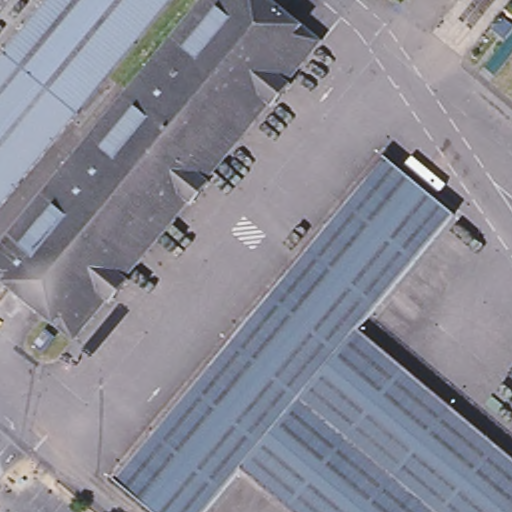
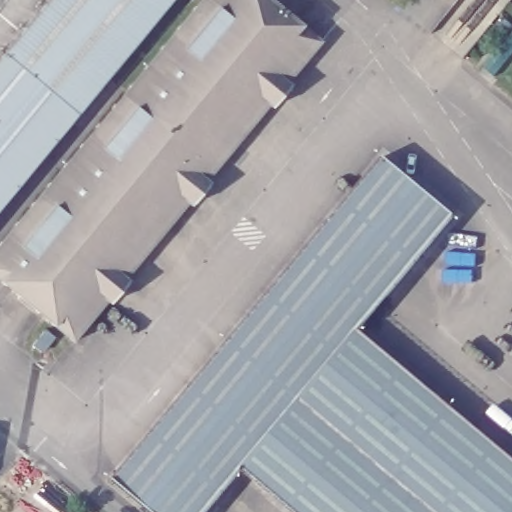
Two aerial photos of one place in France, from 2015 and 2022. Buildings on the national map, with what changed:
unchanged [(0,215),(0,70),(58,0),(179,0),(0,215)]
unchanged [(282,10),(282,9),(286,12),(285,13),(297,23),(298,22),(301,24),(300,26),(315,38),(315,36),(322,42),(319,47),(317,46),(304,62),(305,63),(302,67),(300,65),(287,82),(290,85),(272,107),(269,105),(255,120),(257,122),(254,126),(252,124),(239,141),(240,142),(237,145),(236,144),(222,160),(224,161),(222,165),(220,163),(206,180),(210,183),(192,205),(187,202),(175,218),(175,219),(172,223),(171,222),(158,238),(159,239),(157,242),(155,241),(142,257),(143,259),(140,262),(139,261),(125,277),(129,281),(110,303),(107,300),(93,316),(95,317),(92,320),(90,319),(77,335),(78,336),(74,342),(69,338),(70,337),(55,325),(54,326),(50,323),(52,322),(39,311),(37,312),(34,310),(35,308),(20,296),(20,297),(16,295),(17,293),(5,283),(4,284),(0,282),(2,280),(0,278),(0,247),(0,243),(2,241),(3,243),(17,226),(15,225),(18,222),(20,223),(33,207),(31,206),(34,202),(35,204),(49,188),(47,187),(50,183),(52,185),(65,168),(64,167),(67,163),(69,165),(82,148),(80,147),(83,143),(85,145),(98,129),(96,127),(99,124),(100,126),(115,109),(112,107),(115,104),(117,106),(130,90),(129,88),(132,85),(134,86),(147,70),(145,69),(148,66),(150,67),(162,51),(161,50),(164,46),(166,48),(180,31),(177,30),(180,26),(182,27),(195,12),(193,11),(196,7),(198,9),(205,0),(269,0),(282,10)]
unchanged [(155,512),(117,480),(389,157),(460,217),(364,331),(245,472),(211,512),(155,512)]
unchanged [(32,344),(44,329),(54,337),(42,352),(32,344)]
unchanged [(293,512),(245,472),(364,331),(512,455),(512,512),(293,512)]

